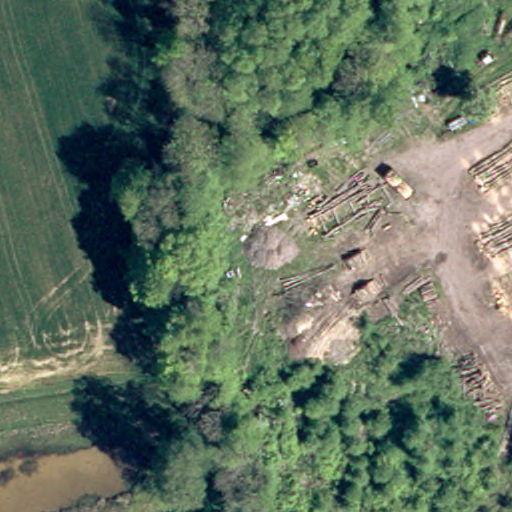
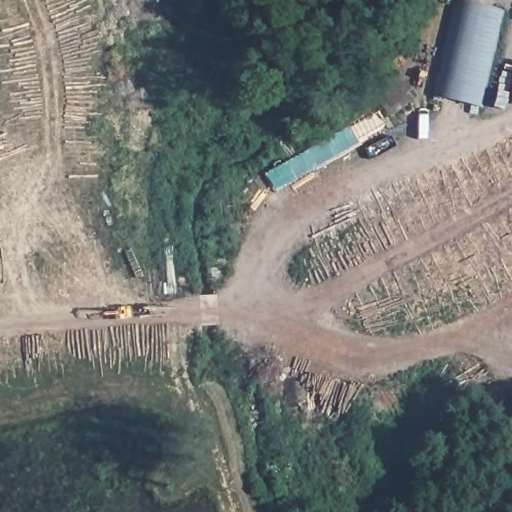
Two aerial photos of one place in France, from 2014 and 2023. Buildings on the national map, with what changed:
new [(483,107),(435,97),(455,0),(462,0),(505,9),(483,107)]

